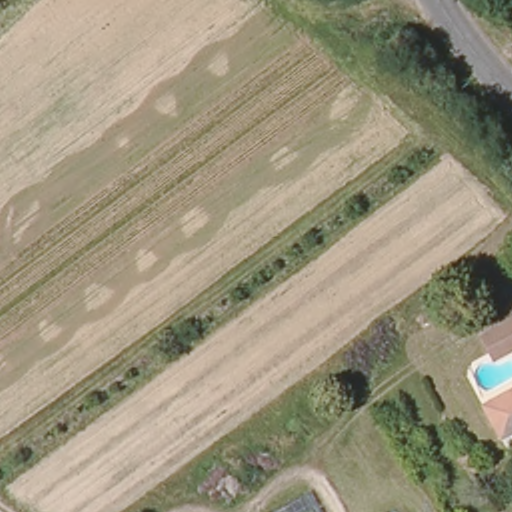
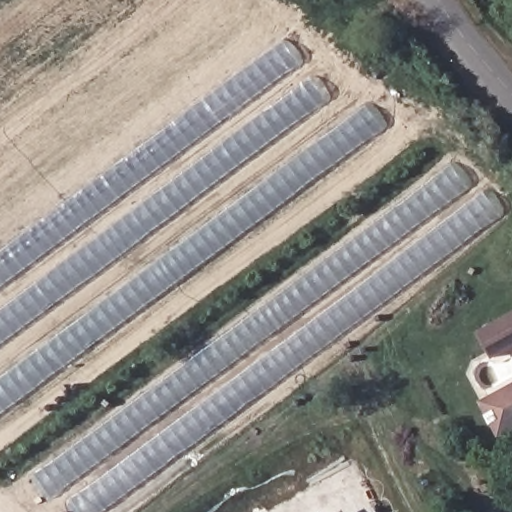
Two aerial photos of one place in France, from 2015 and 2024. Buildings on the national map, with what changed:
new [(302,65),(0,291),(0,253),(286,41),(302,65)]
new [(0,348),(0,310),(313,77),(329,101),(0,348)]
new [(388,129),(0,416),(0,378),(369,103),(388,129)]
new [(478,195),(485,190),(504,217),(107,512),(81,512),(66,490),(54,499),(37,474),(456,163),(478,195)]
unchanged [(497,359),(485,339),(510,321),(512,320),(512,349),(497,359)]
unchanged [(509,440),(491,407),(512,394),(512,438),(509,440)]
demolished [(323,512),(287,512),(314,497),(323,512)]
new [(349,512),(348,512),(349,511),(349,512)]

